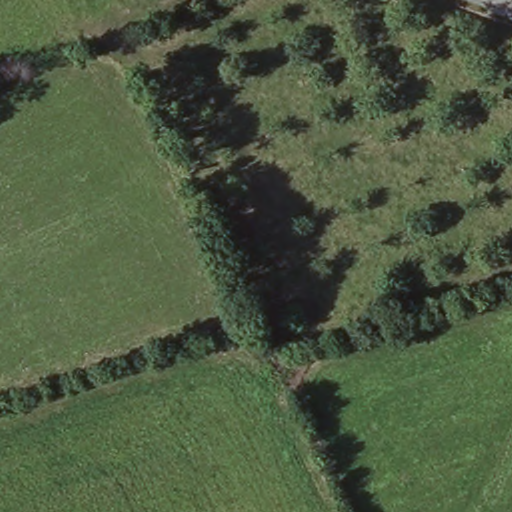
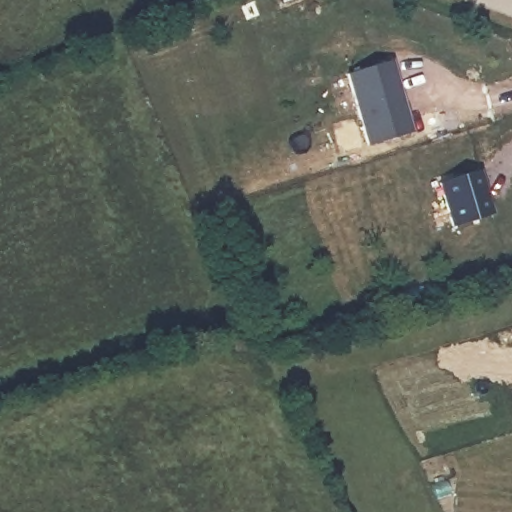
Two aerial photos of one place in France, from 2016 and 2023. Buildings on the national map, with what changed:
new [(349,73),(391,60),(413,133),(370,145),(349,73)]
new [(496,213),(453,228),(437,183),(482,167),(496,213)]

